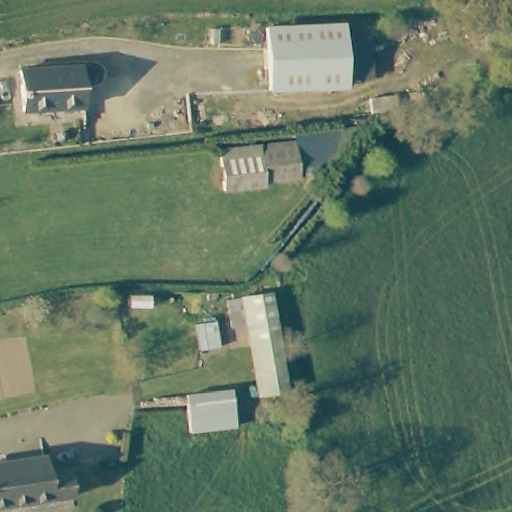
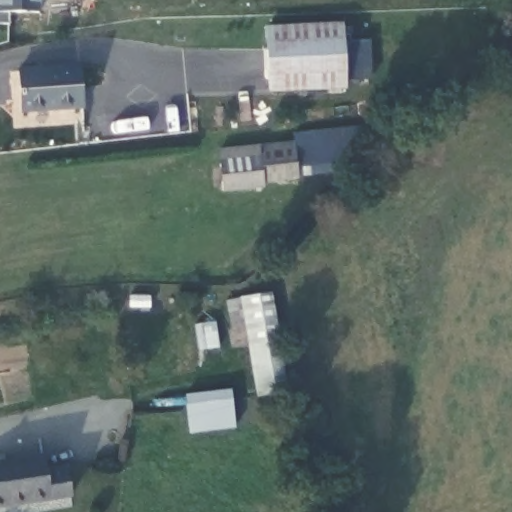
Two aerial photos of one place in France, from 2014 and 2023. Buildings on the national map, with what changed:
new [(10,14),(9,25),(0,24),(0,0),(39,0),(39,14),(10,14)]
unchanged [(340,26),(340,86),(267,88),(267,27),(340,26)]
unchanged [(78,66),(81,107),(22,111),(20,70),(78,66)]
unchanged [(300,141),(306,179),(266,187),(260,147),(300,141)]
unchanged [(225,194),(220,153),(260,147),(266,187),(225,194)]
unchanged [(288,391),(255,402),(243,325),(230,326),(224,300),(272,289),(288,391)]
unchanged [(235,387),(238,431),(191,436),(185,397),(235,387)]
unchanged [(46,467),(66,465),(70,497),(0,506),(0,461),(42,454),(46,467)]

